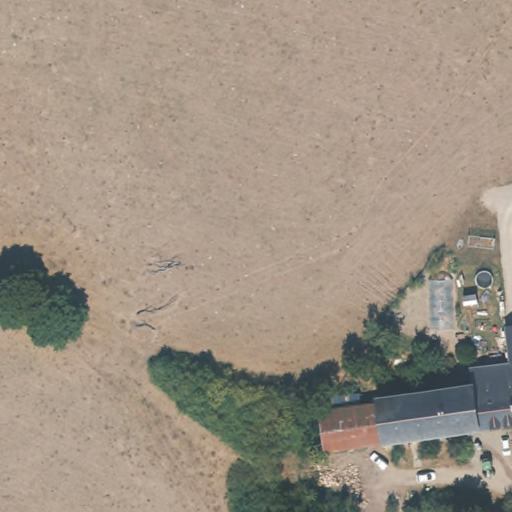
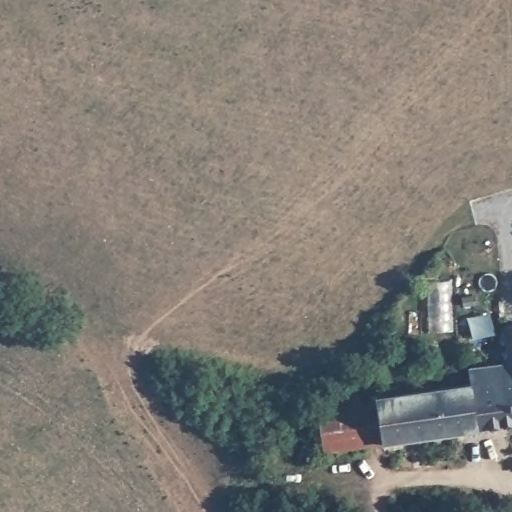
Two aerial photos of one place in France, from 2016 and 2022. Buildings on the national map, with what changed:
unchanged [(470,387),(468,372),(507,367),(503,329),(512,328),(512,427),(476,433),(471,394),(470,387)]
unchanged [(470,387),(471,394),(476,433),(381,445),(380,436),(376,400),(376,399),(470,387)]
unchanged [(342,412),(341,400),(360,398),(361,402),(376,400),(380,436),(325,442),(323,422),(330,414),(342,412)]

